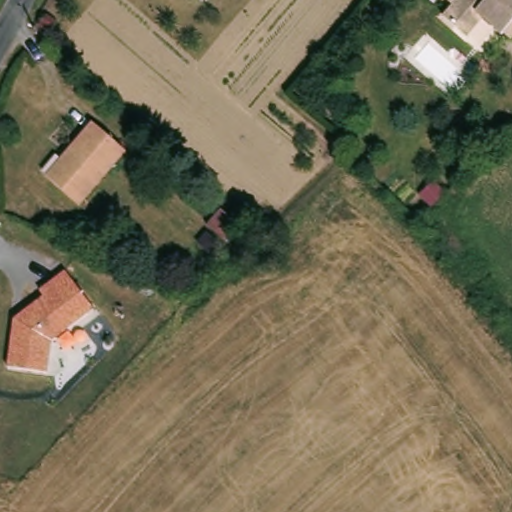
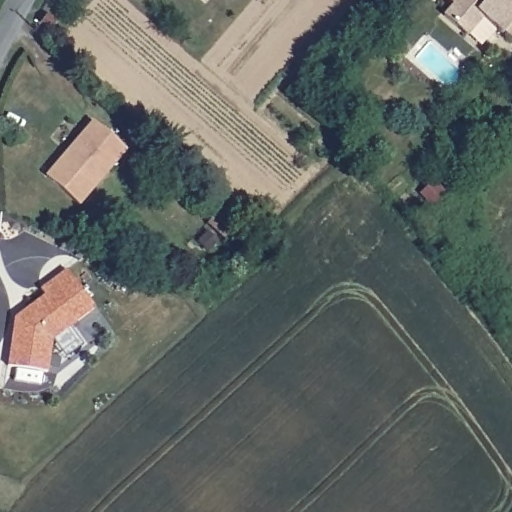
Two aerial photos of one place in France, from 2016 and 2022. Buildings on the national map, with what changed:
unchanged [(510,22),(512,24),(512,34),(507,40),(500,33),(498,35),(480,17),(462,36),(441,15),(452,3),(449,0),(512,0),(512,20),(510,22)]
unchanged [(123,151),(79,202),(49,175),(94,123),(123,151)]
unchanged [(12,317),(44,296),(39,289),(66,271),(93,309),(50,340),(46,373),(5,367),(12,317)]

